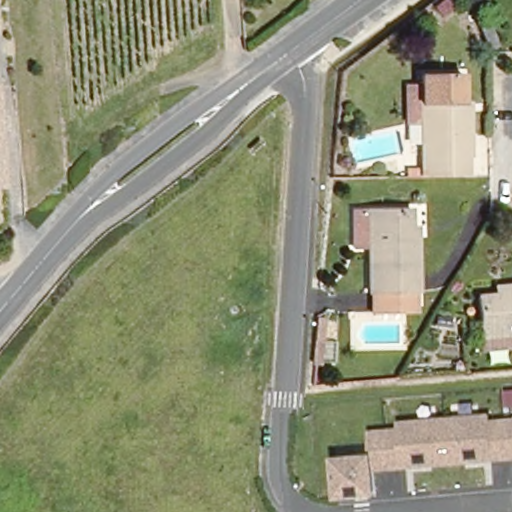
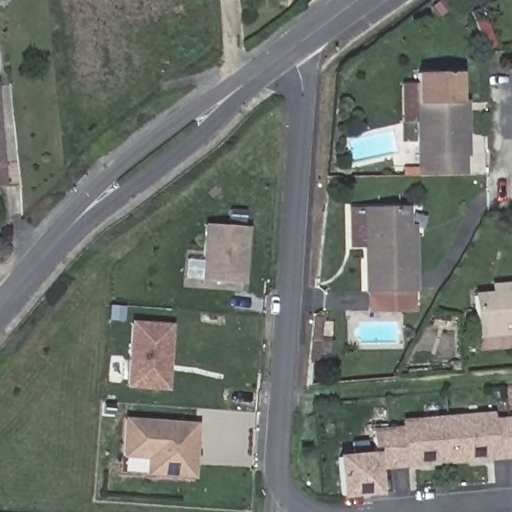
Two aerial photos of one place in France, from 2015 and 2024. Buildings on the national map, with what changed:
unchanged [(459,73),(458,112),(465,112),(462,177),(414,175),(417,120),(403,119),(404,82),(418,83),(419,71),(459,73)]
unchanged [(407,234),(413,234),(416,293),(411,294),(411,316),(372,318),(371,297),(367,297),(365,249),(349,249),(348,211),(364,210),(406,210),(407,234)]
new [(246,285),(200,281),(204,224),(249,227),(246,285)]
unchanged [(477,349),(476,339),(471,296),(499,292),(499,287),(512,285),(512,335),(509,335),(509,346),(477,349)]
new [(173,325),(167,392),(125,389),(130,322),(173,325)]
unchanged [(337,456),(377,452),(373,430),(402,427),(401,420),(494,411),(494,418),(512,416),(512,459),(379,471),(383,494),(341,499),(337,456)]
new [(121,459),(124,418),(199,423),(195,479),(145,475),(145,460),(121,459)]

